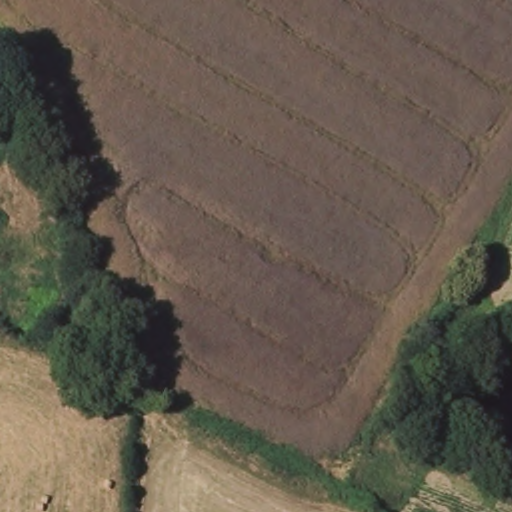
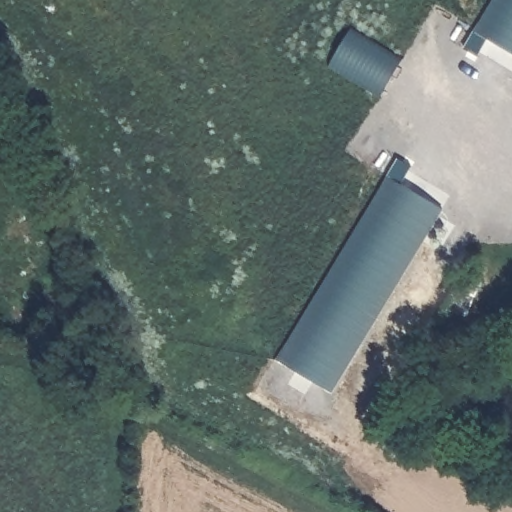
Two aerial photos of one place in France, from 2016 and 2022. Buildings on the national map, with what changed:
new [(474,30),(492,0),(512,0),(512,52),(474,30)]
new [(443,205),(332,389),(277,356),(388,172),(443,205)]

